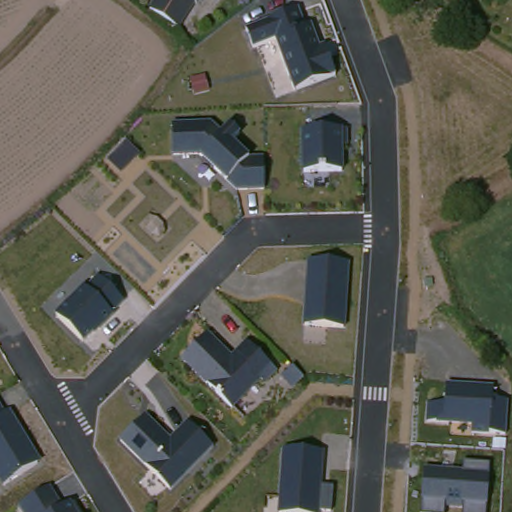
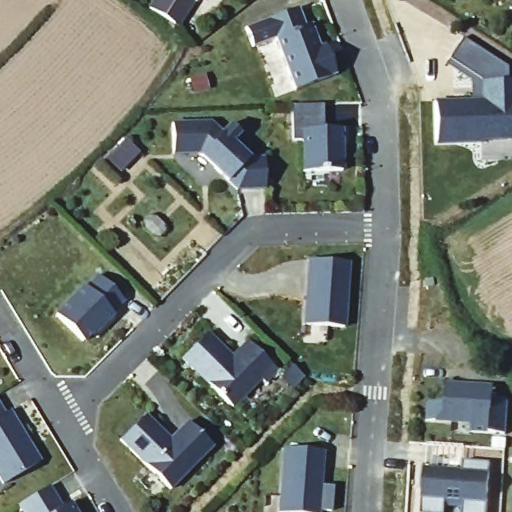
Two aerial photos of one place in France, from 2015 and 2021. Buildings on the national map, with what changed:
unchanged [(182,28),(150,6),(154,0),(200,0),(182,28)]
unchanged [(296,89),(276,39),(251,48),(243,24),(297,5),(304,25),(310,23),(320,47),(326,45),(336,71),(296,89)]
new [(464,40),(509,66),(509,79),(512,80),(512,140),(481,142),(481,143),(437,145),(434,99),(472,99),(471,81),(447,64),(464,40)]
unchanged [(266,187),(234,187),(229,181),(196,151),(173,152),(172,122),(212,121),(219,130),(229,121),(243,134),(234,145),(249,157),(266,156),(266,187)]
unchanged [(344,175),(299,175),(299,130),(343,128),(344,175)]
unchanged [(305,324),(309,261),(349,261),(346,327),(305,324)]
unchanged [(84,341),(58,315),(102,276),(124,299),(84,341)]
unchanged [(262,383),(260,381),(232,408),(184,359),(211,332),(234,354),(252,338),(279,370),(262,383)]
unchanged [(491,432),(489,436),(473,434),(473,426),(430,423),(433,400),(448,401),(449,384),(498,388),(497,400),(511,402),(509,433),(491,432)]
unchanged [(0,481),(0,406),(6,414),(12,411),(42,461),(3,485),(0,481)]
unchanged [(171,489),(120,442),(146,416),(170,440),(192,421),(214,444),(171,489)]
unchanged [(318,512),(277,512),(282,447),(325,449),(322,484),(336,486),(334,512),(319,511),(318,512)]
unchanged [(447,507),(446,512),(423,512),(427,467),(464,470),(465,463),(492,466),(488,512),(462,512),(463,509),(447,507)]
new [(512,469),(512,507),(509,506),(512,469)]
unchanged [(54,490),(67,512),(20,512),(18,508),(54,490)]

